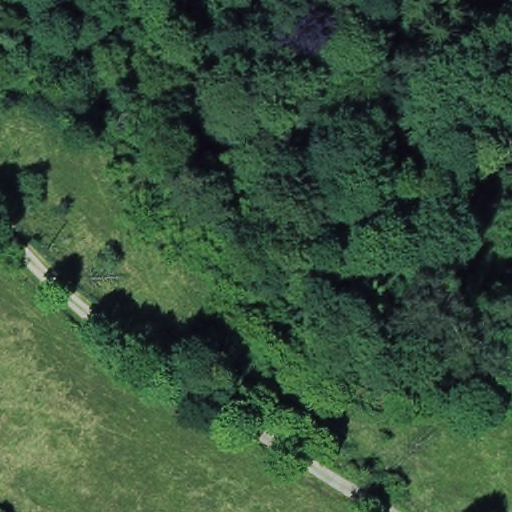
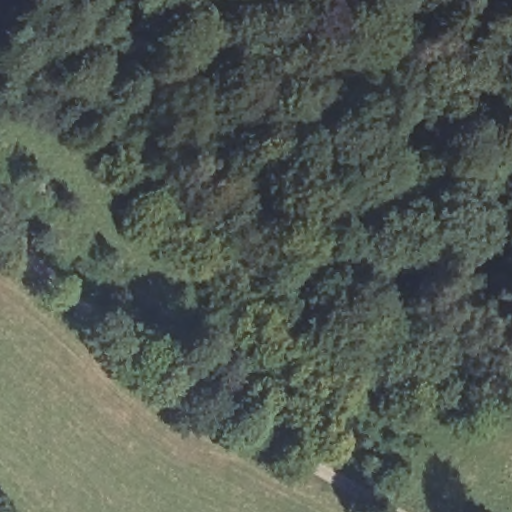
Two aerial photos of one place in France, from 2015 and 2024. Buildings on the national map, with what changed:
[]

